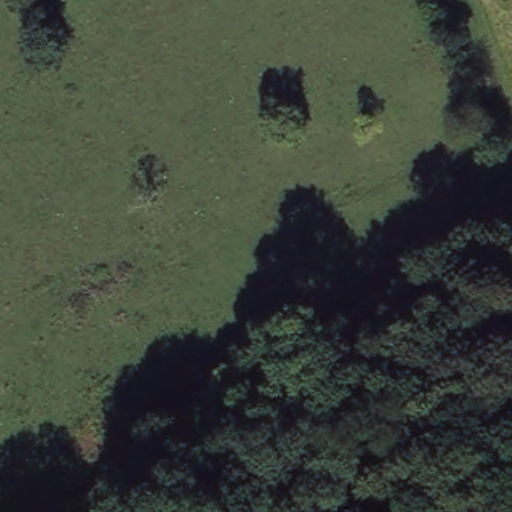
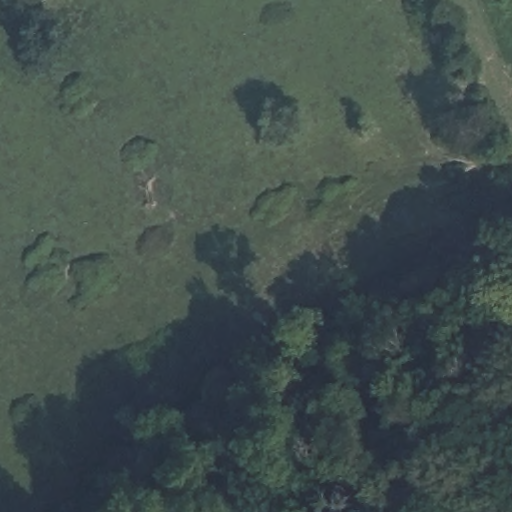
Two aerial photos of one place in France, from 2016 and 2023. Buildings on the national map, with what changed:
[]

